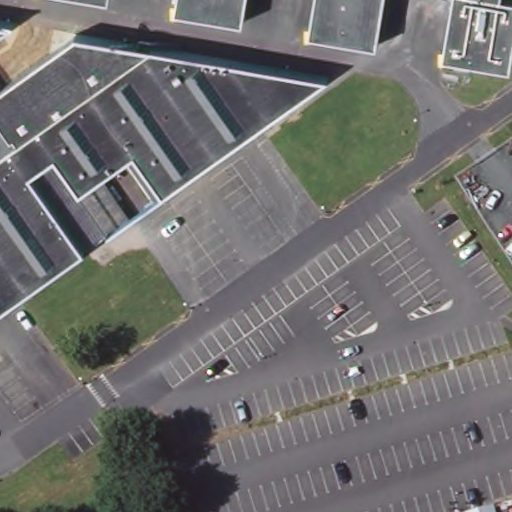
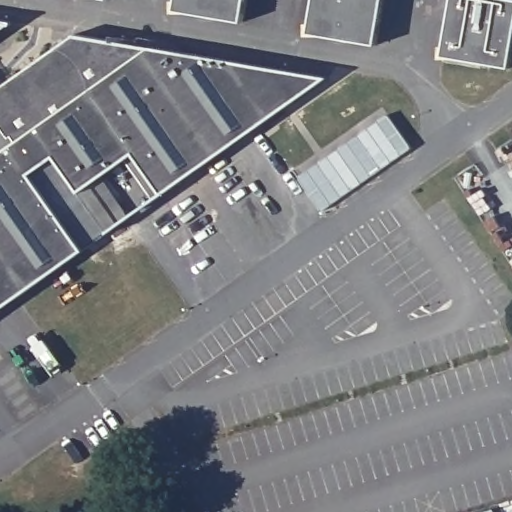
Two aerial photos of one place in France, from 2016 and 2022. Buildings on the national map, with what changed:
unchanged [(105,3),(87,0),(106,0),(105,3)]
unchanged [(239,26),(172,14),(174,0),(243,0),(239,26)]
unchanged [(372,48),(305,36),(311,0),(382,0),(372,48)]
unchanged [(512,3),(512,40),(507,72),(439,61),(449,3),(438,1),(438,0),(497,0),(512,3)]
unchanged [(7,23),(0,28),(0,22),(7,23)]
unchanged [(72,35),(324,77),(152,199),(123,159),(76,192),(51,157),(27,173),(81,251),(0,308),(0,85),(72,35)]
new [(392,111),(416,145),(326,209),(302,175),(392,111)]
unchanged [(496,512),(489,512),(495,510),(496,512)]

